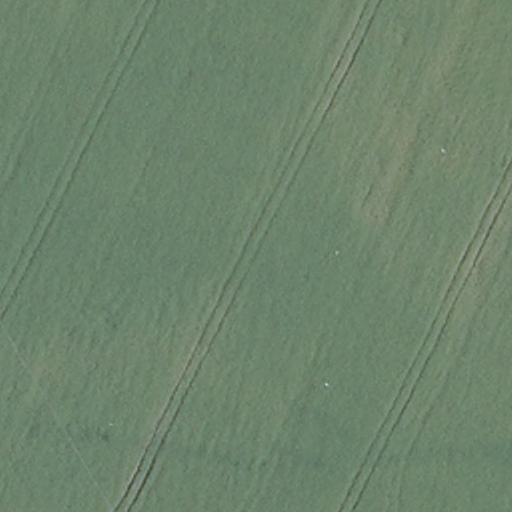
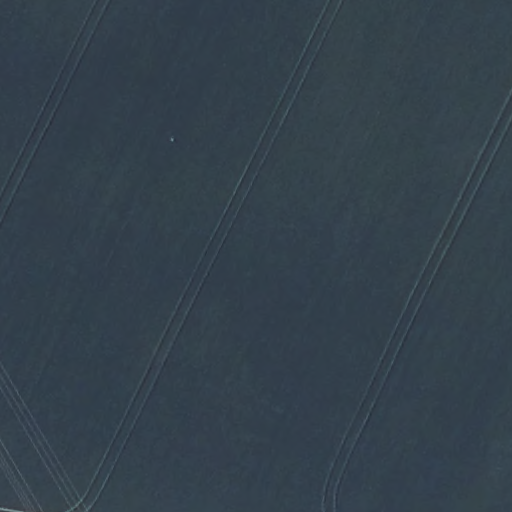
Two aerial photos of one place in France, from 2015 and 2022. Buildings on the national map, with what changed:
[]

